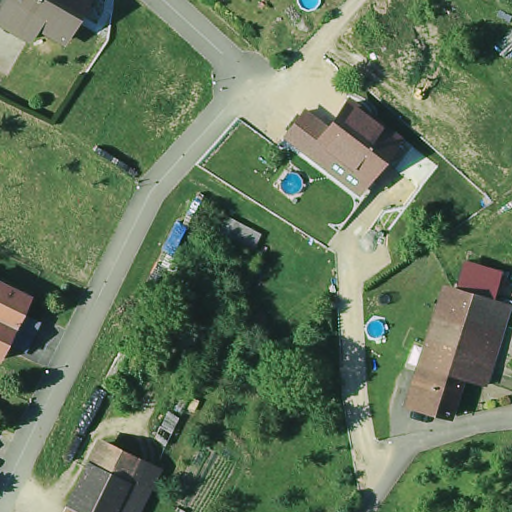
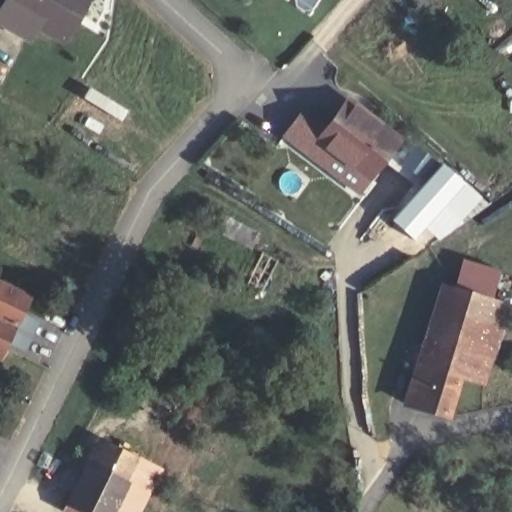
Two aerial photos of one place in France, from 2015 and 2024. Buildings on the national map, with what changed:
unchanged [(4,0),(79,0),(61,33),(35,18),(27,34),(0,19),(0,6),(3,0),(4,0)]
unchanged [(360,195),(283,139),(306,108),(330,121),(348,100),(406,139),(360,195)]
new [(412,141),(430,154),(410,179),(395,165),(412,141)]
new [(440,161),(485,200),(440,242),(424,229),(413,240),(390,220),(440,161)]
unchanged [(254,252),(219,235),(229,215),(264,234),(254,252)]
new [(464,260),(505,274),(499,300),(458,287),(464,260)]
unchanged [(0,358),(0,282),(25,293),(32,297),(23,315),(42,323),(28,351),(10,342),(2,360),(0,358)]
unchanged [(495,320),(442,305),(447,285),(500,300),(495,320)]
unchanged [(454,373),(452,379),(417,369),(428,330),(434,332),(442,305),(495,320),(487,347),(477,380),(454,373)]
unchanged [(442,411),(398,399),(408,366),(417,369),(452,379),(442,411)]
unchanged [(85,461),(95,439),(132,457),(120,480),(85,461)]
unchanged [(65,497),(85,461),(120,480),(104,512),(94,512),(65,497)]

